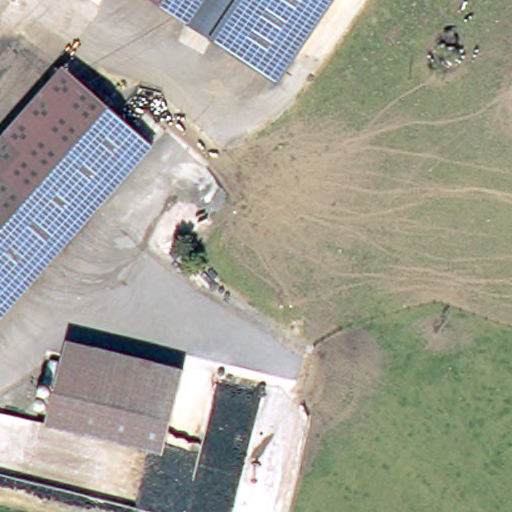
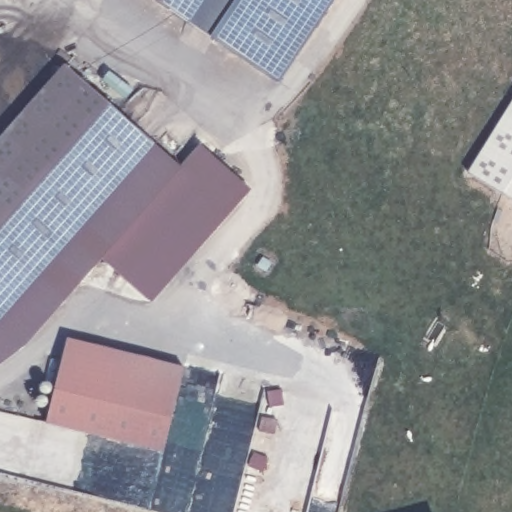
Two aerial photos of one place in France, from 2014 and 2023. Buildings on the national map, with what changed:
unchanged [(281,89),(139,0),(337,0),(281,89)]
unchanged [(77,230),(0,166),(0,137),(62,63),(152,142),(77,230)]
new [(471,176),(512,111),(512,201),(471,176)]
new [(28,343),(0,364),(0,320),(77,230),(152,142),(181,168),(28,343)]
new [(200,145),(250,190),(151,305),(100,260),(181,168),(200,145)]
unchanged [(0,320),(0,166),(77,230),(0,320)]
unchanged [(190,372),(176,437),(57,410),(72,345),(190,372)]

